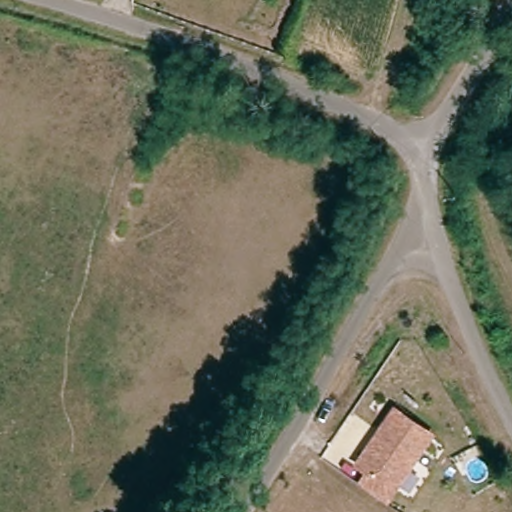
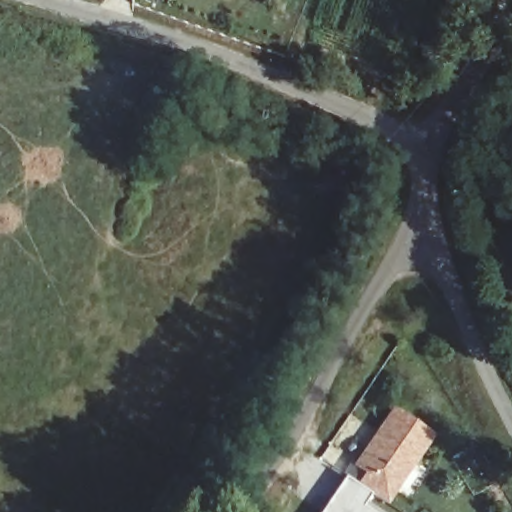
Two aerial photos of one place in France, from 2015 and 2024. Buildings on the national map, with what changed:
unchanged [(431,438),(382,502),(381,502),(358,483),(367,471),(356,463),(367,448),(375,438),(396,410),(431,438)]
new [(362,505),(372,512),(320,512),(346,475),(358,483),(370,493),(362,505)]

